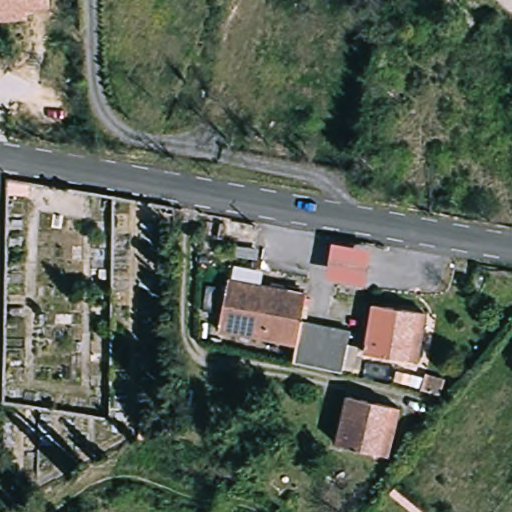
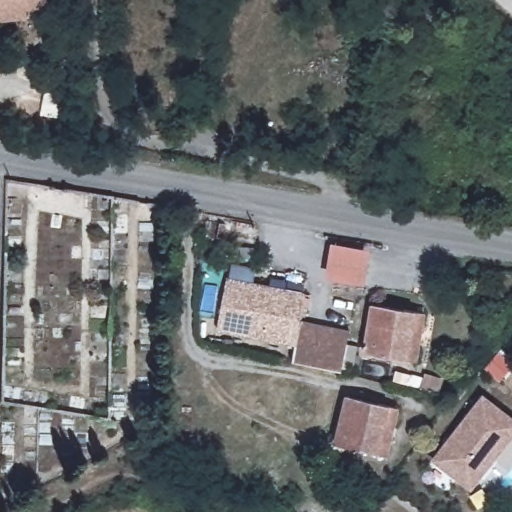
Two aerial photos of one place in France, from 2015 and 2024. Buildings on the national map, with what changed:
unchanged [(18,7),(0,7),(0,0),(40,0),(40,7),(18,7)]
unchanged [(326,278),(332,245),(371,250),(364,283),(326,278)]
unchanged [(217,330),(229,280),(308,292),(301,321),(295,346),(217,330)]
unchanged [(411,362),(367,353),(377,305),(429,314),(426,333),(420,365),(411,362)]
unchanged [(345,328),(337,376),(291,365),(295,346),(301,321),(345,328)]
new [(484,393),(512,415),(512,439),(472,492),(432,460),(484,393)]
unchanged [(380,452),(341,443),(352,397),(404,410),(400,428),(393,455),(380,452)]

